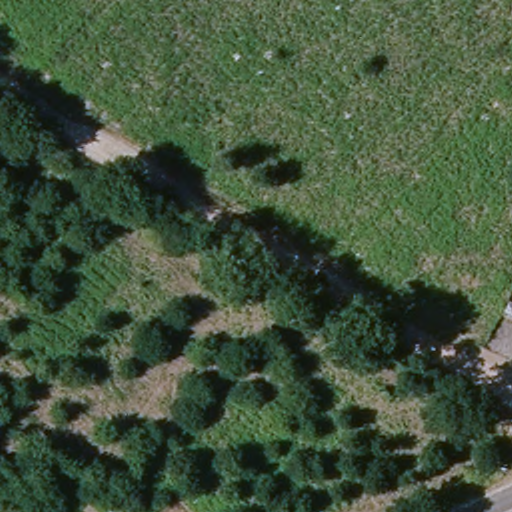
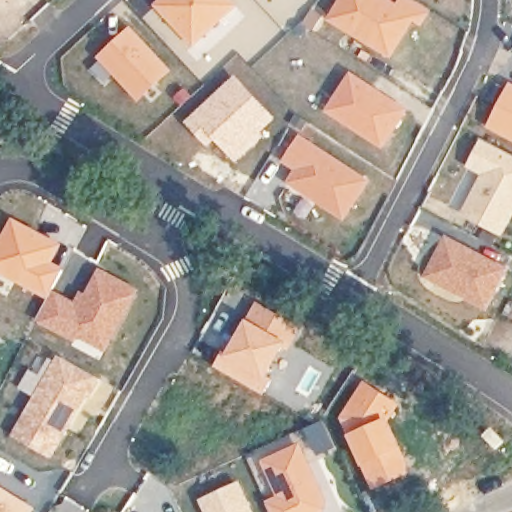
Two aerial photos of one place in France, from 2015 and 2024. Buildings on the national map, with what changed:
new [(1,0),(0,1),(0,0),(1,0)]
new [(234,0),(239,6),(193,47),(153,5),(159,0),(234,0)]
new [(392,0),(398,4),(401,0),(411,0),(433,13),(423,27),(415,22),(392,60),(326,21),(339,0),(392,0)]
new [(97,57),(131,26),(172,71),(138,102),(97,57)]
new [(383,150),(326,112),(350,71),(410,110),(383,150)]
new [(234,162),(216,141),(207,147),(186,121),(235,76),(275,119),(261,132),(264,135),(234,162)]
new [(491,119),(509,85),(512,86),(512,141),(491,130),(491,119)]
new [(346,221),(287,184),(282,162),(300,135),(371,180),(369,183),(346,221)]
new [(476,148),(480,150),(484,142),(512,156),(512,221),(477,203),(497,165),(473,153),(476,148)]
new [(497,165),(477,203),(511,221),(501,237),(461,215),(480,174),(467,167),(473,153),(497,165)]
new [(74,301),(99,267),(141,290),(105,358),(37,322),(48,300),(0,274),(0,242),(13,219),(60,246),(62,251),(54,262),(65,268),(54,290),(71,299),(74,301)]
new [(473,249),(465,263),(474,277),(463,298),(424,278),(446,235),(473,249)]
new [(509,268),(487,312),(463,298),(474,277),(465,263),(473,249),(509,268)]
new [(262,379),(224,357),(257,302),(303,328),(289,342),(264,376),(262,379)]
new [(53,460),(12,436),(34,397),(19,388),(31,370),(40,375),(52,360),(61,357),(96,377),(53,460)]
new [(364,381),(400,403),(390,422),(401,446),(413,472),(373,488),(362,468),(347,436),(340,417),(364,381)]
new [(261,461),(300,443),(327,501),(324,512),(270,512),(265,501),(276,496),(261,461)]
new [(240,481),(255,512),(205,512),(199,500),(240,481)]
new [(36,508),(34,512),(0,512),(0,486),(36,508)]

